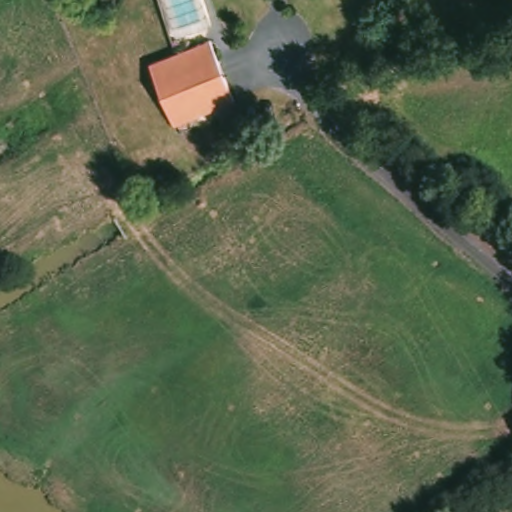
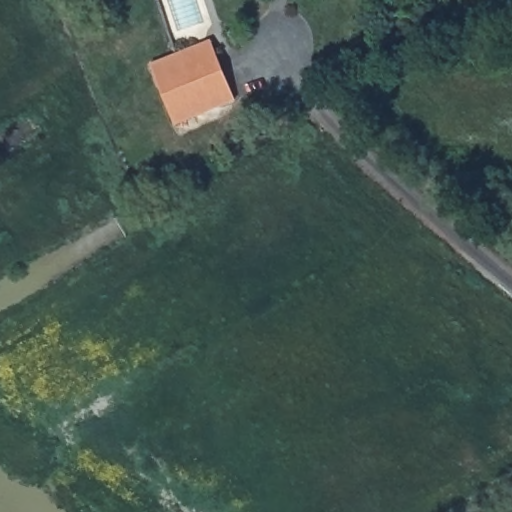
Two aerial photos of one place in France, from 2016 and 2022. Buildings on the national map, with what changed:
unchanged [(144,68),(207,40),(233,96),(170,126),(166,118),(147,75),(144,68)]

